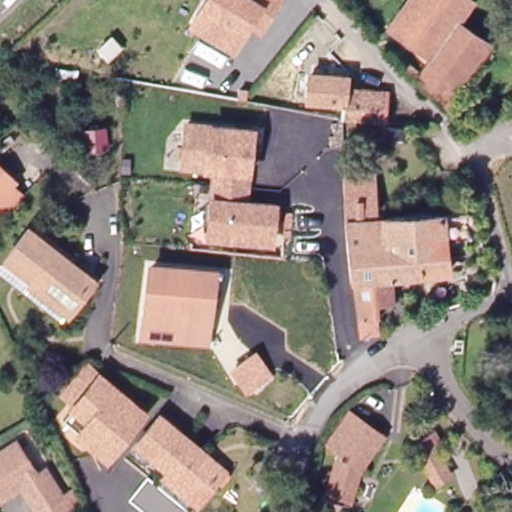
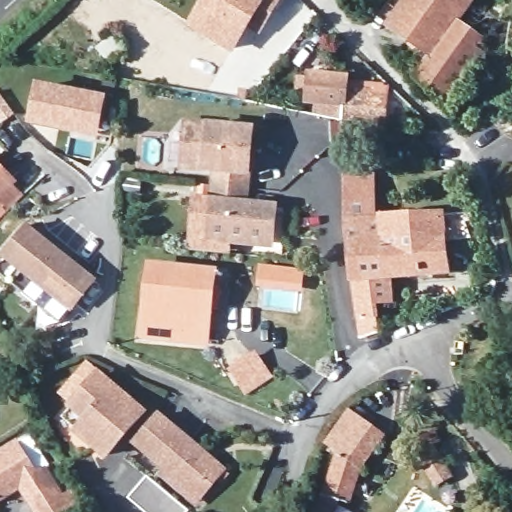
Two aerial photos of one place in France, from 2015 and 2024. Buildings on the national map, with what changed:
unchanged [(255,31),(243,24),(228,49),(198,32),(189,26),(199,7),(204,0),(274,0),(269,7),(255,31)]
unchanged [(461,0),(449,17),(484,41),(439,105),(400,64),(404,57),(419,67),(431,51),(389,21),(404,0),(461,0)]
unchanged [(98,51),(110,40),(119,50),(106,61),(98,51)]
unchanged [(309,97),(312,72),(347,77),(346,89),(387,92),(384,121),(340,118),(342,101),(309,97)]
new [(108,95),(99,137),(28,125),(37,82),(108,95)]
unchanged [(252,127),(244,202),(274,205),(270,239),(245,236),(227,240),(207,237),(214,168),(182,164),(186,120),(252,127)]
unchanged [(0,203),(0,162),(19,184),(0,203)]
unchanged [(379,303),(381,330),(363,335),(356,278),(353,278),(347,172),(374,170),(379,219),(474,210),(476,234),(448,236),(451,270),(396,275),(398,302),(379,303)]
unchanged [(25,286),(1,267),(8,258),(29,232),(90,282),(69,308),(63,317),(25,286)]
unchanged [(150,270),(210,277),(204,342),(143,336),(150,270)]
unchanged [(232,372),(252,357),(268,382),(248,396),(232,372)]
unchanged [(111,448),(67,412),(79,397),(68,387),(90,359),(103,369),(146,406),(111,448)]
unchanged [(315,503),(326,455),(319,450),(344,415),(381,441),(358,474),(356,476),(354,475),(345,508),(335,506),(331,512),(310,512),(315,503)]
unchanged [(147,445),(169,418),(232,471),(210,497),(203,506),(169,477),(176,468),(147,445)]
unchanged [(418,445),(434,441),(444,479),(429,483),(418,445)]
unchanged [(0,500),(0,454),(10,447),(29,478),(39,472),(56,500),(61,507),(54,512),(30,512),(16,490),(0,500)]
unchanged [(191,512),(148,512),(138,503),(155,482),(191,512)]

